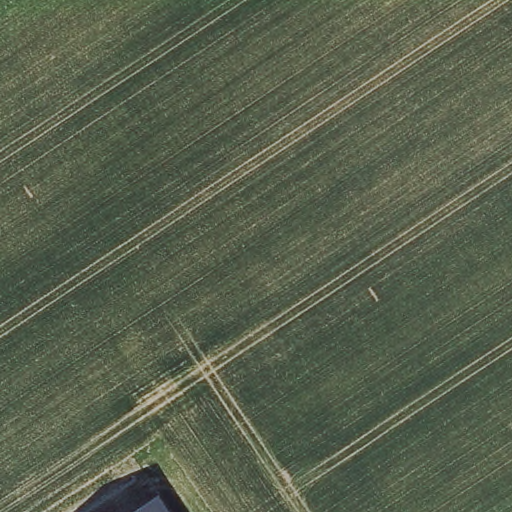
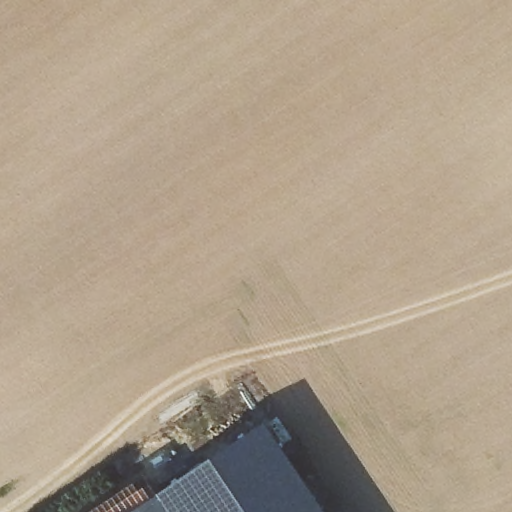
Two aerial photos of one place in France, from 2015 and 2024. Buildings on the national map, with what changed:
new [(266,422),(326,512),(168,512),(157,496),(266,422)]
unchanged [(134,512),(157,496),(168,512),(134,512)]

